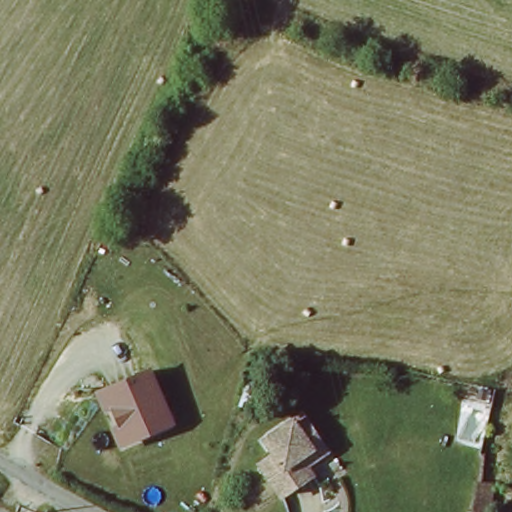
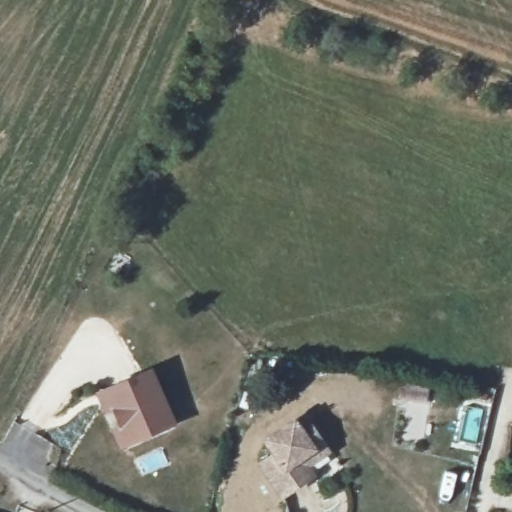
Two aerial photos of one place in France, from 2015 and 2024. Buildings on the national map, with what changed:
unchanged [(125,439),(120,425),(105,388),(149,371),(166,415),(169,421),(125,439)]
unchanged [(269,446),(275,442),(291,432),(308,422),(312,429),(320,443),(326,453),(319,456),(304,466),(308,474),(314,485),(300,492),(283,503),(277,495),(270,482),(263,469),(272,464),(278,460),(273,452),(269,446)]
unchanged [(482,494),(482,512),(466,512),(466,508),(467,494),(482,494)]

